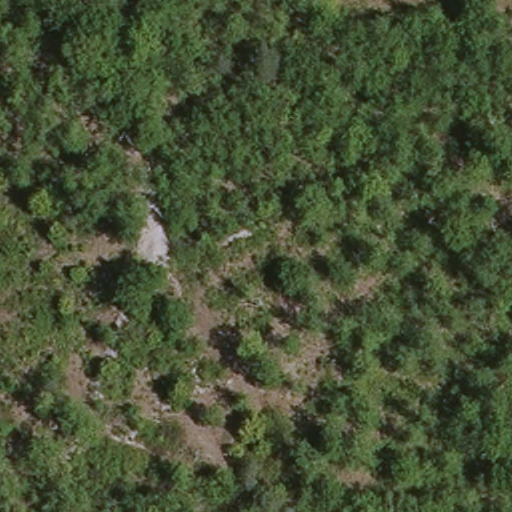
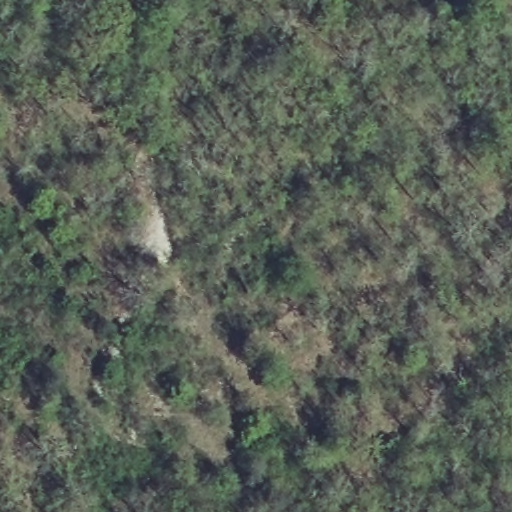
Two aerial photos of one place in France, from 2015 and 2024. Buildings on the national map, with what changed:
[]

